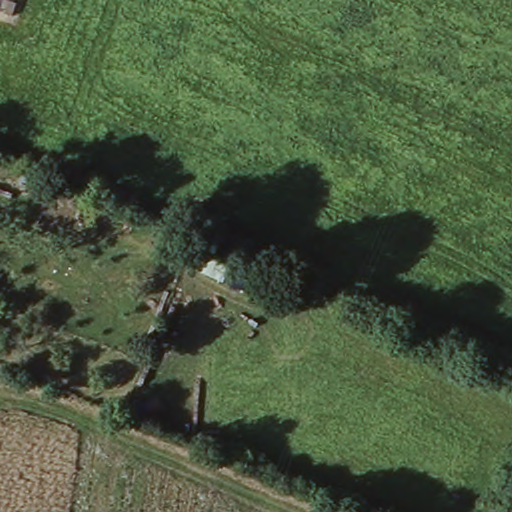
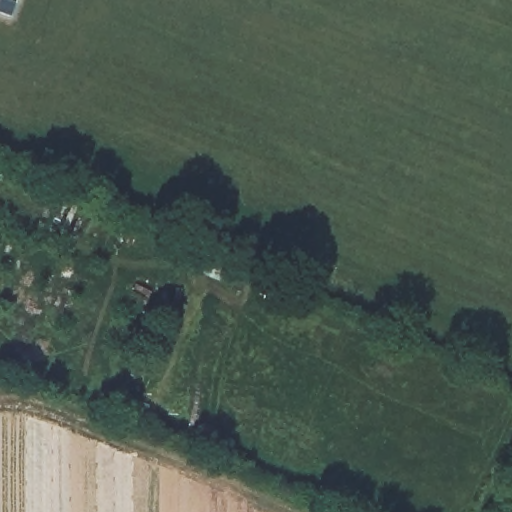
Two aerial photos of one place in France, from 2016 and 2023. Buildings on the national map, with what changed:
unchanged [(0,5),(0,0),(1,0),(0,5)]

